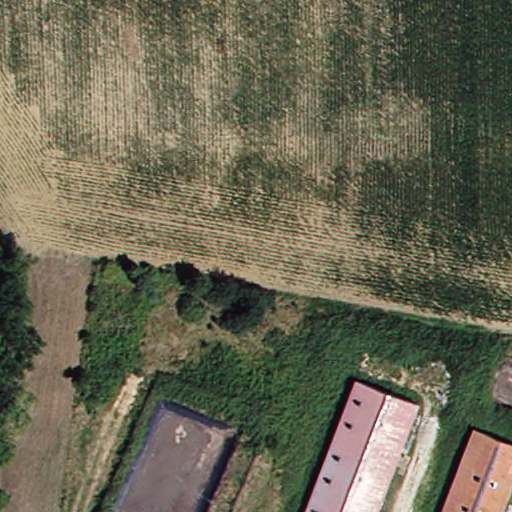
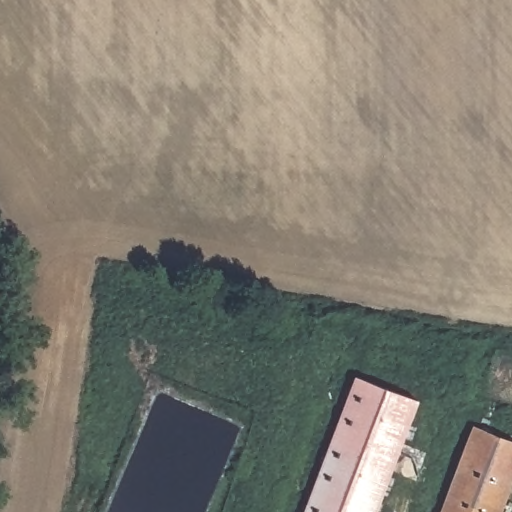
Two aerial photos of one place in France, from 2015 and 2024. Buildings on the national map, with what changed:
unchanged [(418,405),(376,512),(309,512),(358,383),(418,405)]
unchanged [(512,438),(512,478),(499,512),(445,512),(478,426),(512,438)]

